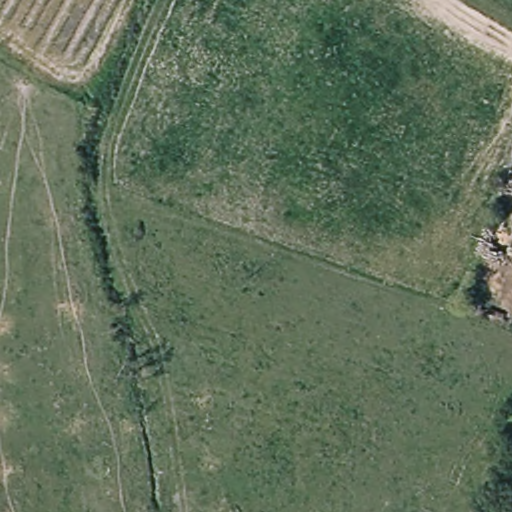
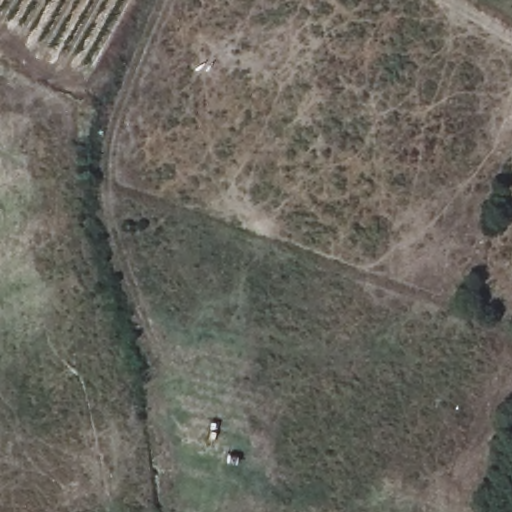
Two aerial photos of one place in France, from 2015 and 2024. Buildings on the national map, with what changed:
[]

